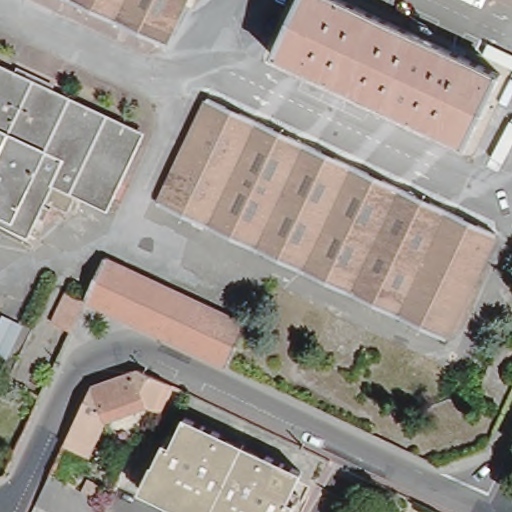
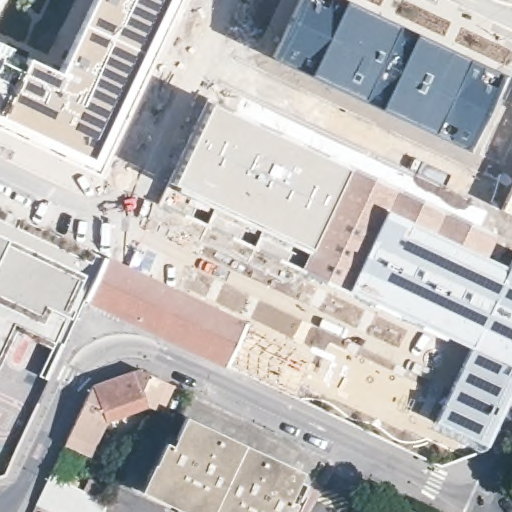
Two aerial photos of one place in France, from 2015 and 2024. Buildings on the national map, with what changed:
new [(0,129),(0,0),(177,0),(96,173),(0,129)]
demolished [(67,0),(189,0),(167,47),(67,0)]
unchanged [(270,53),(295,0),(343,0),(499,72),(465,143),(270,53)]
new [(0,34),(0,15),(7,18),(0,34)]
new [(0,117),(0,43),(29,57),(0,117)]
demolished [(34,226),(0,210),(0,58),(150,126),(114,202),(59,176),(49,197),(43,208),(34,226)]
unchanged [(490,228),(443,324),(166,196),(211,99),(490,228)]
new [(500,209),(512,184),(512,215),(500,209)]
new [(166,196),(443,324),(490,228),(497,234),(488,256),(508,264),(512,256),(512,393),(488,445),(435,421),(469,348),(162,205),(166,196)]
new [(86,297),(84,296),(46,381),(37,376),(54,343),(65,316),(68,317),(88,275),(9,239),(0,234),(0,208),(104,256),(86,297)]
new [(88,275),(68,317),(65,316),(54,343),(15,324),(0,357),(0,234),(9,239),(88,275)]
unchanged [(86,297),(105,254),(247,321),(229,364),(86,297)]
demolished [(73,325),(71,330),(52,322),(66,292),(85,300),(73,325)]
unchanged [(63,442),(67,435),(90,385),(137,366),(176,384),(162,412),(142,403),(116,413),(110,416),(95,448),(92,455),(63,442)]
unchanged [(296,489),(303,492),(293,512),(199,512),(148,488),(174,431),(182,434),(193,415),(226,430),(225,434),(244,443),(246,439),(250,442),(248,445),(269,455),(271,452),(305,469),(296,489)]
unchanged [(84,489),(90,478),(105,486),(100,496),(105,499),(105,501),(103,512),(56,512),(35,502),(49,472),(84,489)]

